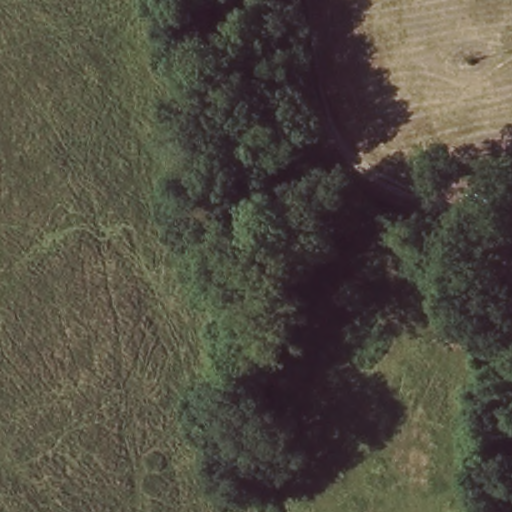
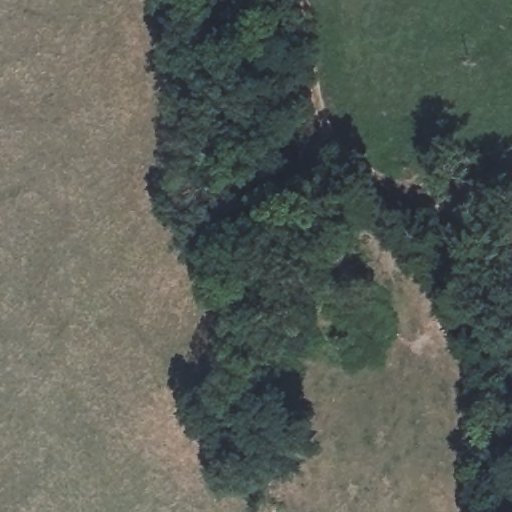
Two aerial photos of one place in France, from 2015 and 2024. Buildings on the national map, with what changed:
[]

